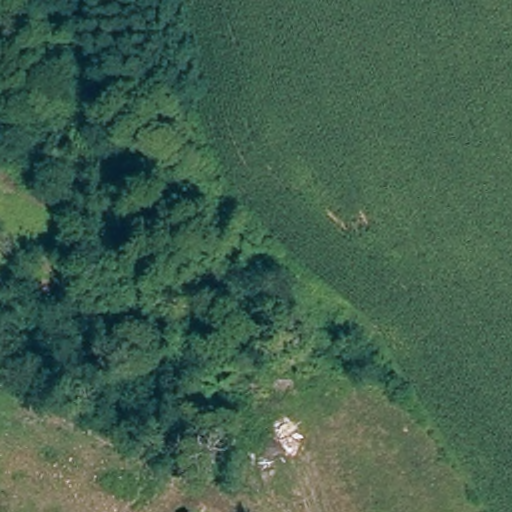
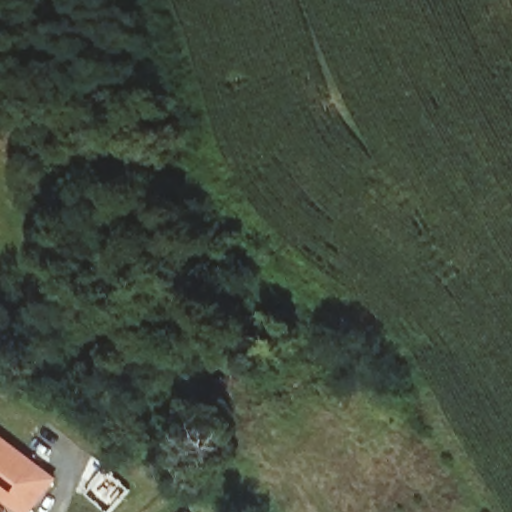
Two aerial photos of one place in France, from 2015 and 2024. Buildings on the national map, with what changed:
new [(55,478),(29,512),(24,512),(0,493),(0,435),(55,478)]

